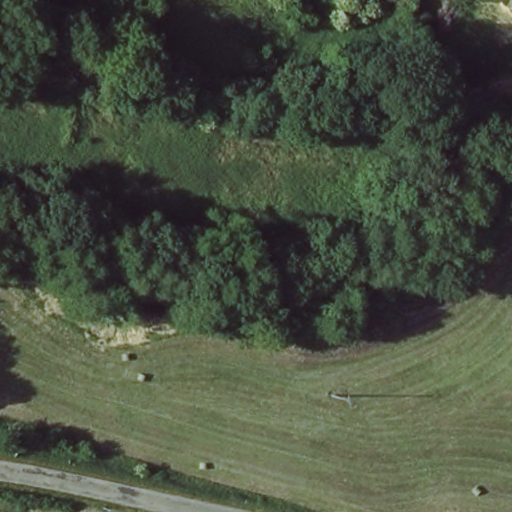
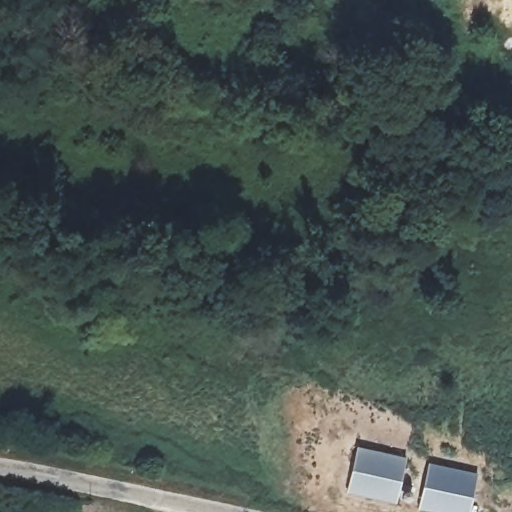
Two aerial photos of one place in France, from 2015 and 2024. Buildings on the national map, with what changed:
new [(356,447),(405,457),(395,505),(346,493),(356,447)]
new [(428,463),(477,474),(469,512),(429,512),(418,509),(428,463)]

